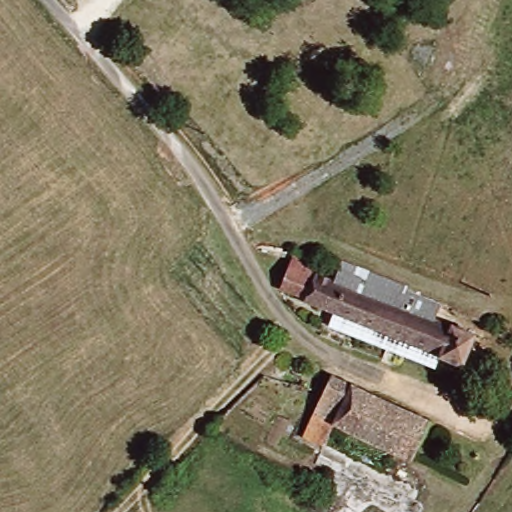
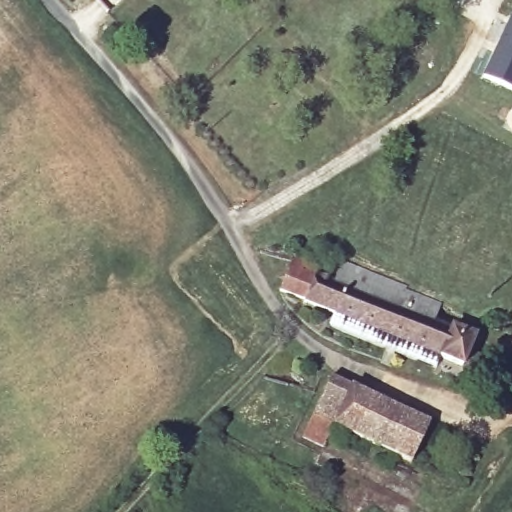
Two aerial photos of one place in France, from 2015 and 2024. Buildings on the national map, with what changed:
new [(512,17),(512,89),(481,76),(510,15),(512,17)]
unchanged [(320,272),(317,278),(332,285),(340,265),(408,293),(405,298),(416,302),(410,316),(473,340),(461,370),(305,307),(307,304),(278,293),(292,260),(320,272)]
unchanged [(315,461),(321,447),(301,437),(312,413),(330,375),(351,385),(429,421),(410,460),(431,470),(412,510),(353,480),(344,498),(322,487),(325,485),(331,470),(315,461)]

